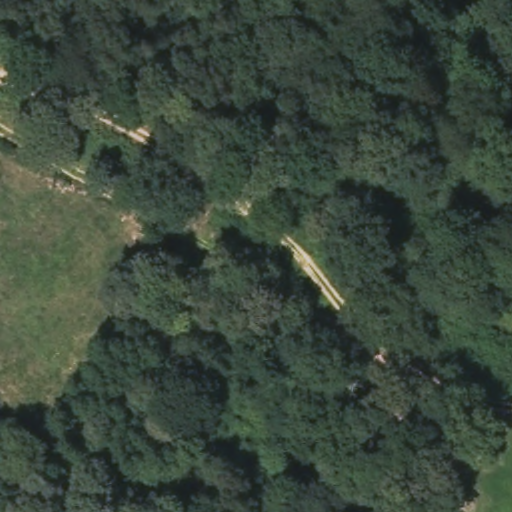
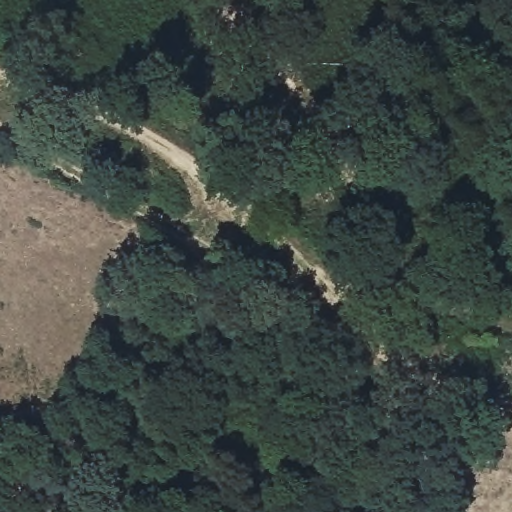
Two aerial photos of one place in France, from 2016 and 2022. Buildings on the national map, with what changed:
unchanged [(512,446),(512,451),(503,476),(483,466),(494,436),(512,446)]

